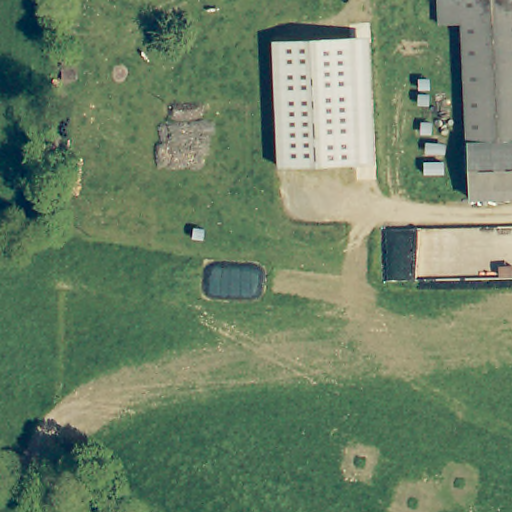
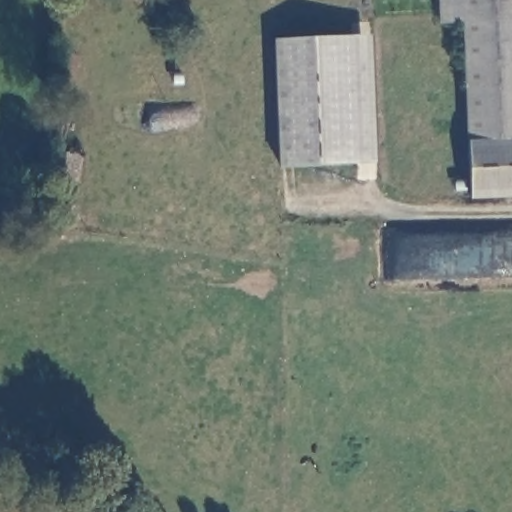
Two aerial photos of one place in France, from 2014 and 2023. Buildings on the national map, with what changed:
unchanged [(438,24),(437,0),(461,0),(462,23),(438,24)]
unchanged [(465,142),(462,23),(461,0),(512,0),(512,140),(465,142)]
unchanged [(376,164),(278,168),(273,40),(371,36),(376,164)]
unchanged [(470,199),(465,142),(512,140),(512,196),(470,199)]

